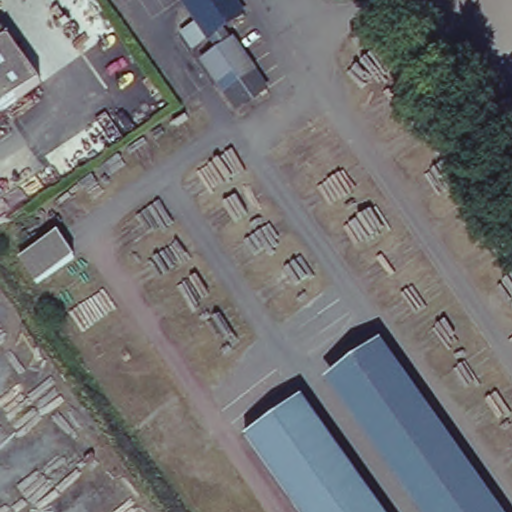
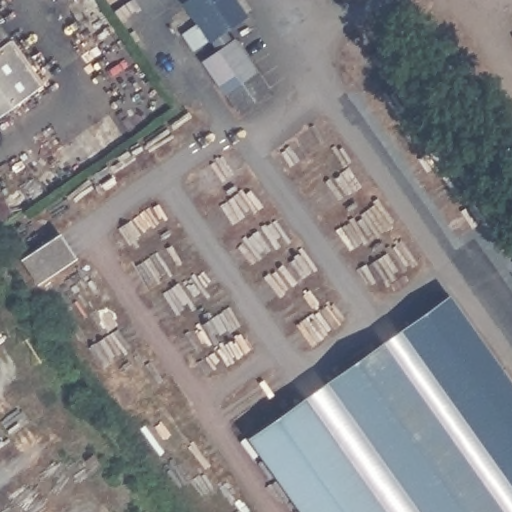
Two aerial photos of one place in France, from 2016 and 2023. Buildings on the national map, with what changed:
unchanged [(190,49),(176,34),(190,20),(180,3),(185,0),(237,0),(246,15),(190,49)]
unchanged [(0,114),(0,45),(0,26),(9,39),(41,85),(0,114)]
unchanged [(235,110),(200,59),(235,35),(270,87),(235,110)]
unchanged [(17,258),(60,231),(77,257),(35,284),(17,258)]
new [(512,388),(512,488),(398,330),(447,297),(512,388)]
new [(512,488),(512,512),(504,512),(384,341),(398,330),(512,488)]
unchanged [(504,512),(422,512),(328,381),(384,341),(504,512)]
new [(385,512),(303,399),(328,381),(422,512),(385,512)]
unchanged [(385,512),(303,512),(248,435),(301,396),(385,512)]

